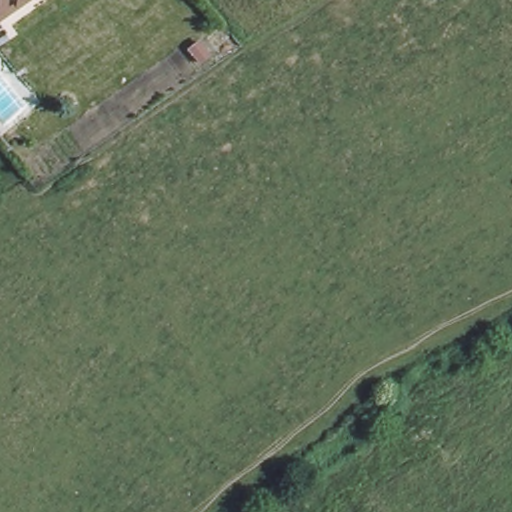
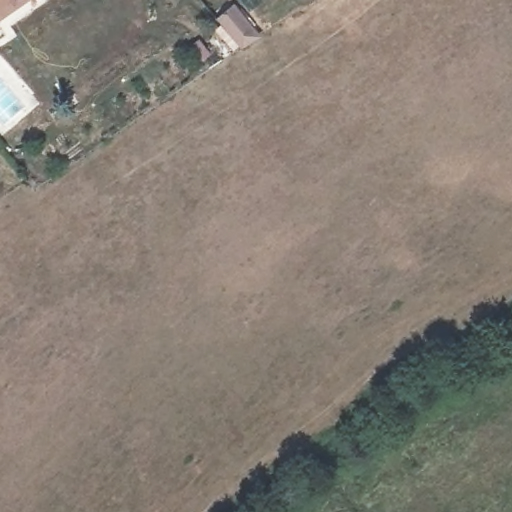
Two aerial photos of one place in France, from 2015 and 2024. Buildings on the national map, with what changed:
unchanged [(13,0),(0,8),(0,0),(13,0)]

